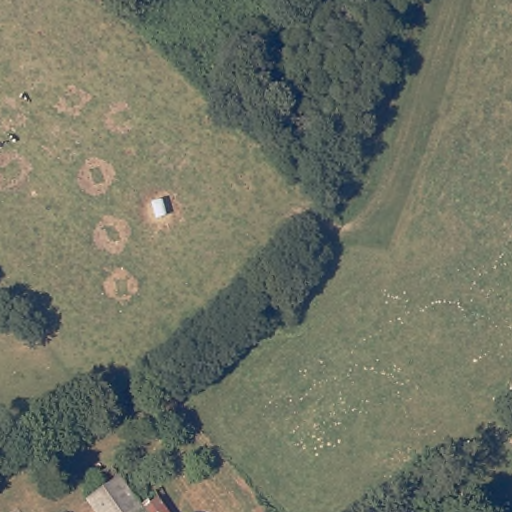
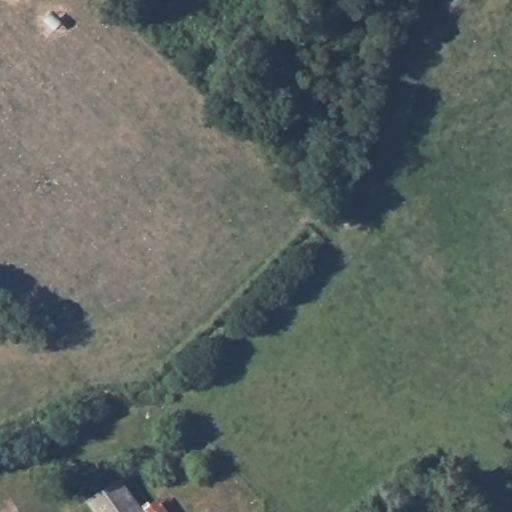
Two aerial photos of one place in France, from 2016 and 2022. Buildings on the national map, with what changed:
unchanged [(173,512),(150,512),(126,478),(140,468),(173,512)]
unchanged [(109,512),(97,496),(123,475),(126,478),(150,512),(109,512)]

